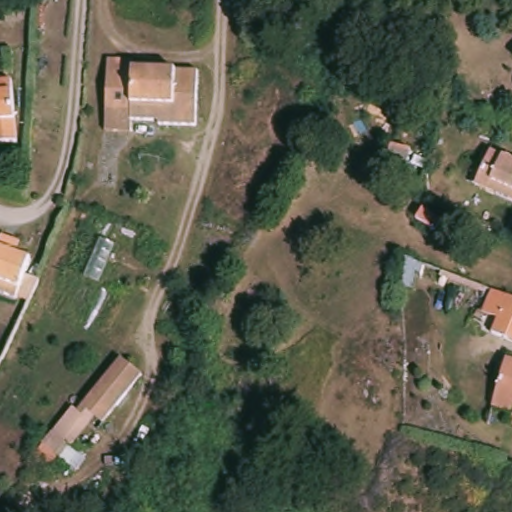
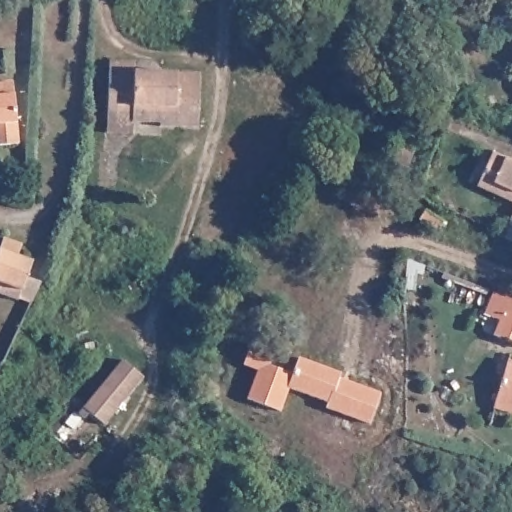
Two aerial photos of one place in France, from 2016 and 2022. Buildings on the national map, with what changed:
unchanged [(192,128),(156,124),(156,120),(131,117),(129,131),(104,127),(112,68),(114,56),(137,59),(136,67),(200,75),(192,128)]
unchanged [(15,147),(0,147),(0,85),(16,85),(15,147)]
unchanged [(477,176),(485,159),(488,150),(512,161),(512,202),(493,193),(472,184),(477,176)]
unchanged [(409,173),(389,169),(392,154),(412,157),(409,173)]
unchanged [(442,233),(423,226),(428,214),(447,222),(442,233)]
unchanged [(7,246),(24,255),(19,266),(31,273),(11,310),(0,304),(0,259),(1,257),(7,246)]
unchanged [(423,277),(417,277),(416,293),(405,292),(408,261),(424,267),(423,277)]
unchanged [(500,331),(507,314),(491,308),(499,287),(512,292),(512,335),(500,331)]
new [(370,425),(326,407),(327,402),(291,388),(281,414),(247,398),(256,371),(242,364),(252,342),(277,352),(271,367),(292,374),(299,358),(341,375),(340,378),(382,396),(370,425)]
unchanged [(114,359),(137,372),(107,425),(91,416),(88,420),(86,423),(80,418),(82,415),(114,359)]
unchanged [(512,362),(512,414),(492,408),(506,361),(512,362)]

